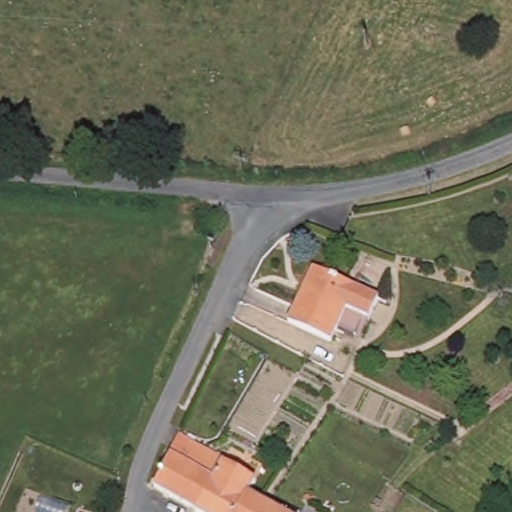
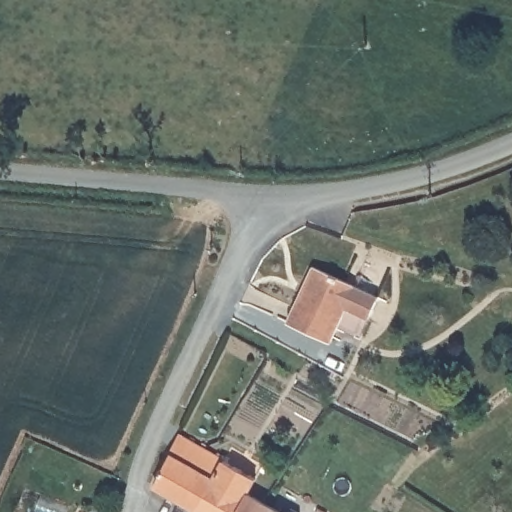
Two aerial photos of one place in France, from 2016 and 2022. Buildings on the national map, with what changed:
unchanged [(334,341),(292,322),(318,268),(359,287),(334,341)]
unchanged [(202,510),(161,486),(185,436),(217,455),(219,451),(228,455),(226,460),(229,461),(202,510)]
unchanged [(242,512),(205,512),(202,510),(229,461),(260,480),(253,492),(242,512)]
unchanged [(253,492),(269,502),(287,512),(242,512),(253,492)]
unchanged [(296,507),(305,512),(293,512),(296,507)]

